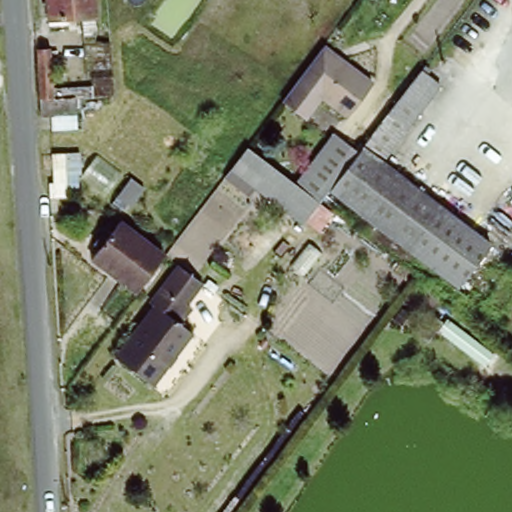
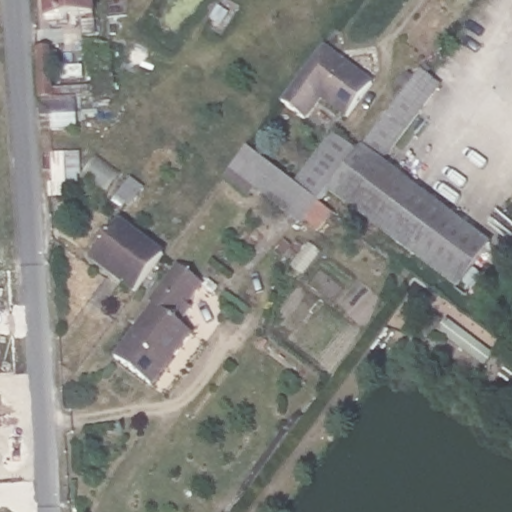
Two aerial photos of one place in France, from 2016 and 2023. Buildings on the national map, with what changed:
unchanged [(87,30),(86,16),(89,15),(89,11),(69,13),(69,18),(52,20),(51,14),(50,0),(95,0),(96,11),(97,29),(87,30)]
unchanged [(376,84),(352,116),(326,96),(307,118),(286,101),(327,46),(376,84)]
unchanged [(50,129),(50,116),(40,116),(36,50),(46,50),(50,100),(73,100),(74,115),(75,128),(50,129)]
unchanged [(494,249),(461,291),(332,195),(361,158),(428,70),(434,75),(428,81),(441,91),(385,165),(494,249)]
unchanged [(336,139),(361,158),(332,195),(323,207),(297,188),(336,139)]
unchanged [(323,207),(307,228),(260,193),(235,174),(251,152),(276,172),(297,188),(323,207)]
unchanged [(59,155),(61,194),(47,195),(47,181),(50,181),(50,155),(59,155)]
unchanged [(137,296),(94,264),(102,252),(97,248),(106,237),(111,241),(121,228),(164,260),(137,296)]
unchanged [(179,270),(205,290),(177,325),(194,337),(155,390),(119,363),(158,310),(152,305),(179,270)]

